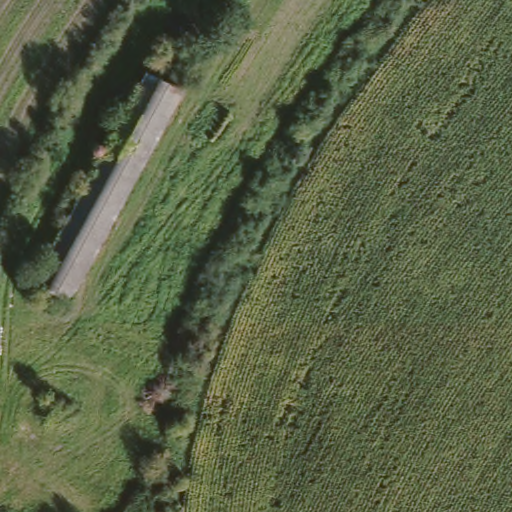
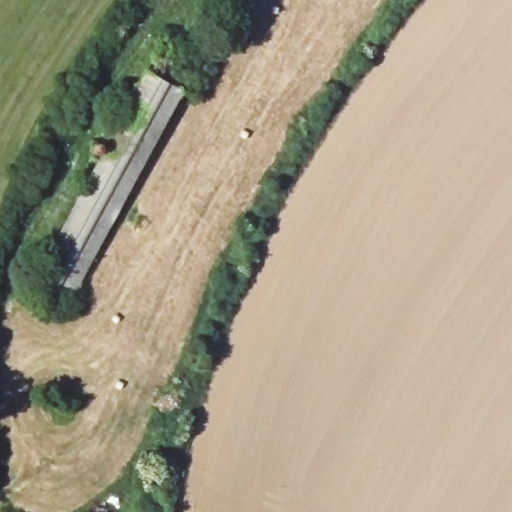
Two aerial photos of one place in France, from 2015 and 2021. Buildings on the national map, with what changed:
unchanged [(182,89),(69,302),(33,283),(144,69),(182,89)]

